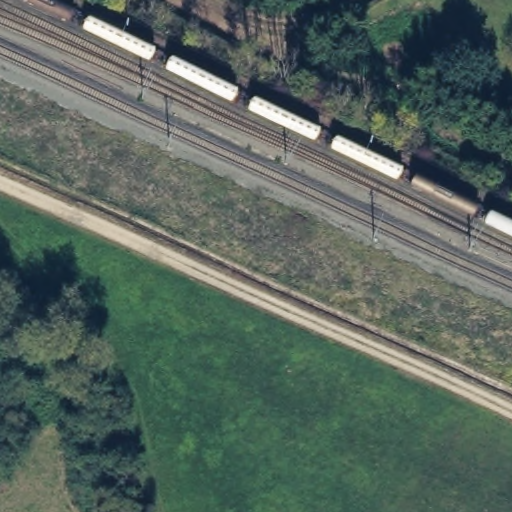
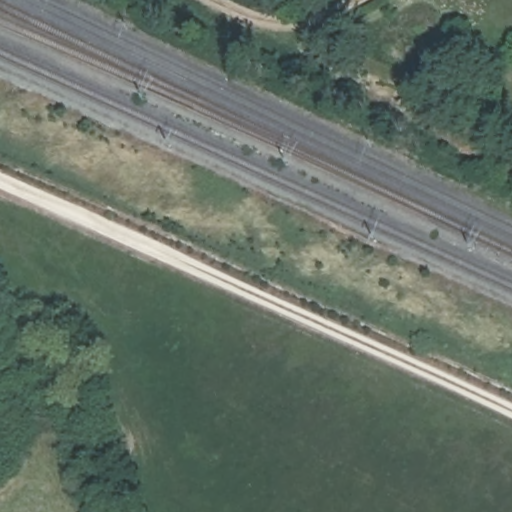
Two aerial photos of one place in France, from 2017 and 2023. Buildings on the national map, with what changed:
[]

